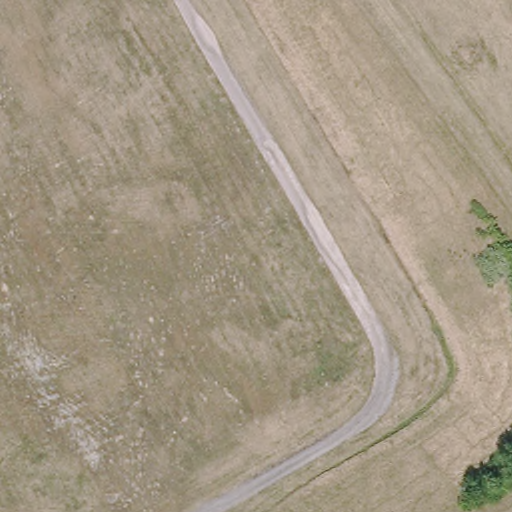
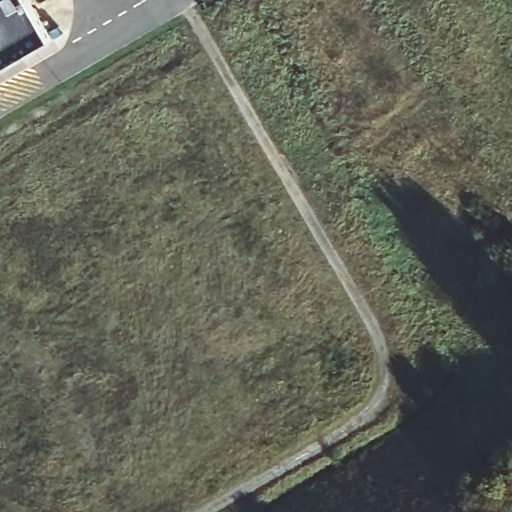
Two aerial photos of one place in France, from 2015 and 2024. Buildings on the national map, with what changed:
new [(55,30),(0,62),(0,0),(39,0),(55,30)]

